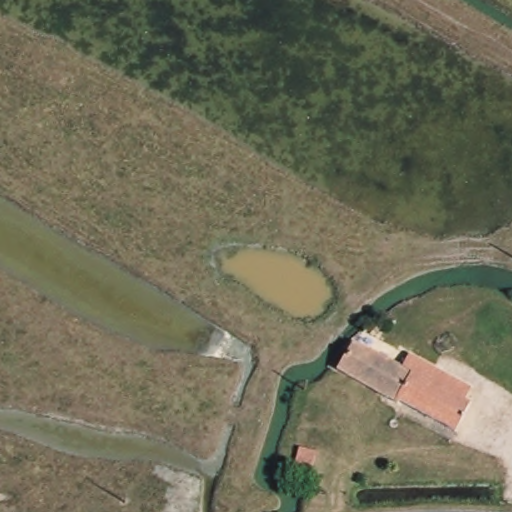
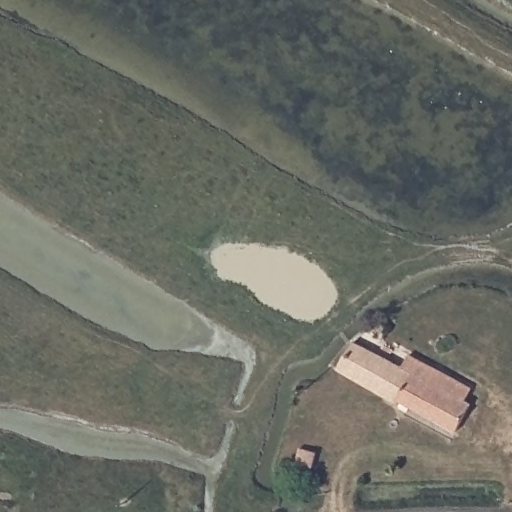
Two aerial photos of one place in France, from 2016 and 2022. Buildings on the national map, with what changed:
unchanged [(356,340),(405,364),(409,355),(476,389),(471,399),(480,403),(464,433),(405,403),(402,408),(393,403),(337,374),(356,340)]
unchanged [(327,439),(324,451),(310,448),(314,436),(327,439)]

